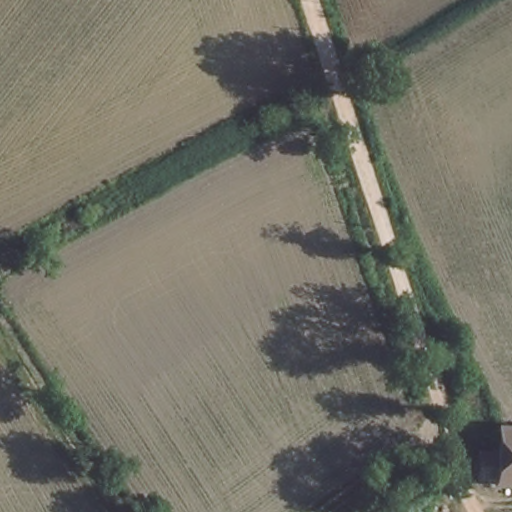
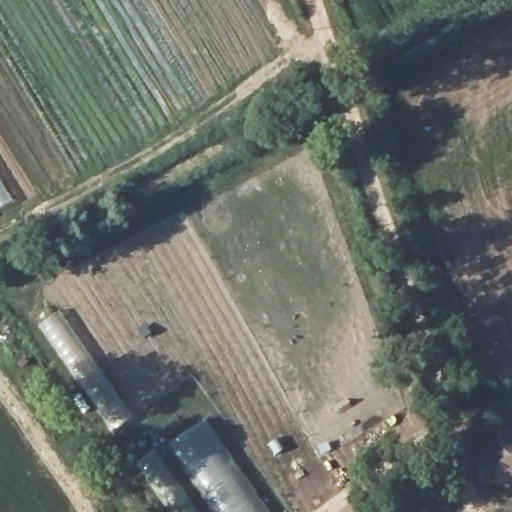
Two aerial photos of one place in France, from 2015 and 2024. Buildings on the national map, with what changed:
new [(115,431),(40,324),(58,311),(132,417),(115,431)]
new [(170,512),(137,463),(205,419),(270,512),(170,512)]
unchanged [(497,480),(498,423),(512,424),(512,481),(497,480)]

